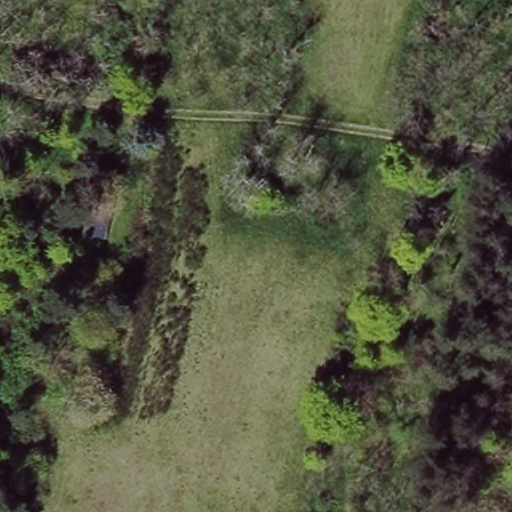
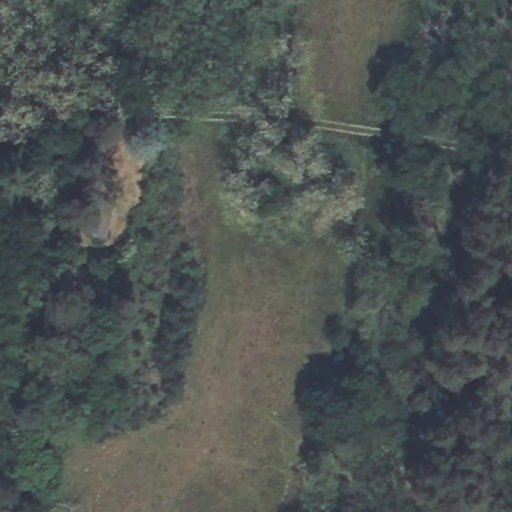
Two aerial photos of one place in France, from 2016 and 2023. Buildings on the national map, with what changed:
unchanged [(20,244),(24,196),(52,200),(43,246),(20,244)]

